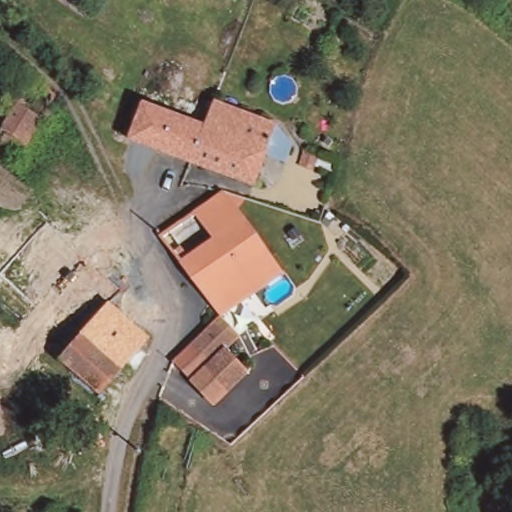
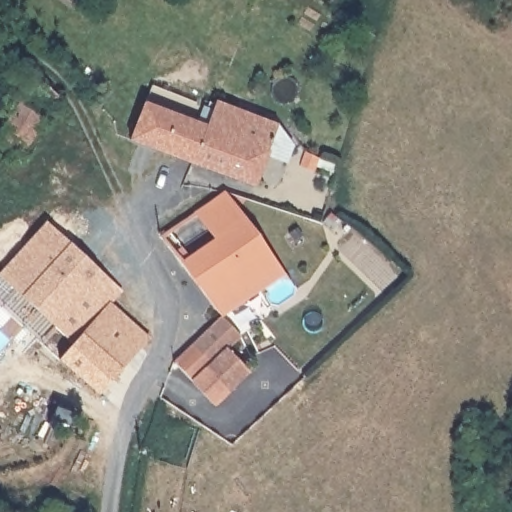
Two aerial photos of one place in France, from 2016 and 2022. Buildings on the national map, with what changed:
unchanged [(20,82),(25,82),(27,81),(29,77),(57,89),(27,153),(0,143),(0,140),(17,102),(12,97),(11,92),(14,87),(16,83),(20,82)]
unchanged [(143,127),(130,121),(138,100),(184,117),(191,98),(222,109),(201,161),(139,142),(143,127)]
unchanged [(283,120),(278,146),(302,153),(298,169),(273,162),(267,180),(201,161),(222,109),(225,101),(283,120)]
unchanged [(337,171),(329,183),(319,178),(323,166),(337,171)]
unchanged [(254,227),(289,275),(222,321),(165,235),(227,192),(254,227)]
new [(0,272),(45,221),(120,290),(111,299),(80,328),(85,333),(76,341),(73,343),(0,275),(0,272)]
unchanged [(80,328),(111,299),(151,337),(119,368),(85,333),(80,328)]
unchanged [(194,345),(222,321),(237,339),(226,348),(194,378),(178,362),(194,345)]
unchanged [(62,355),(76,341),(85,333),(119,368),(98,390),(62,355)]
unchanged [(226,348),(247,373),(216,402),(194,378),(226,348)]

